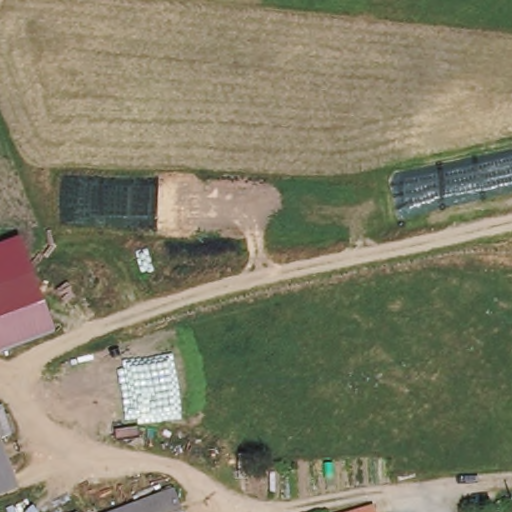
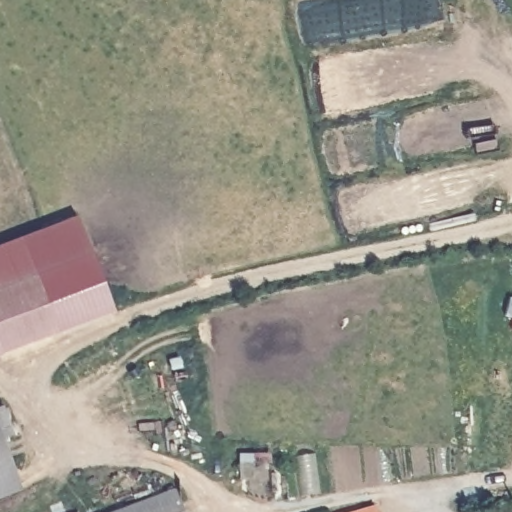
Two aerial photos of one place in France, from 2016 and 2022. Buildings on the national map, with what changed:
new [(19,239),(76,217),(111,311),(54,333),(19,239)]
unchanged [(19,239),(54,333),(0,355),(0,246),(19,239)]
unchanged [(23,486),(0,495),(0,430),(23,486)]
unchanged [(174,512),(110,512),(165,490),(174,512)]
unchanged [(371,506),(372,512),(352,512),(371,506)]

